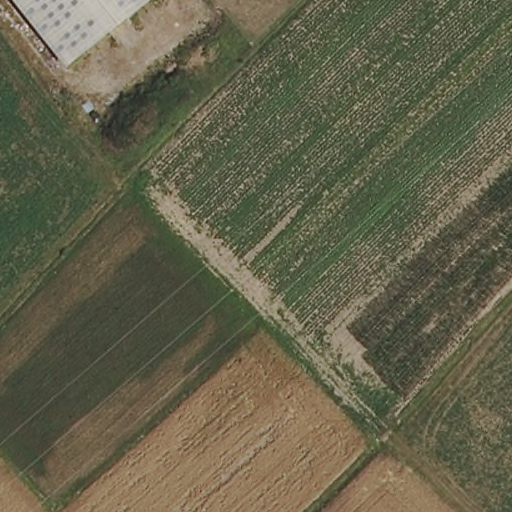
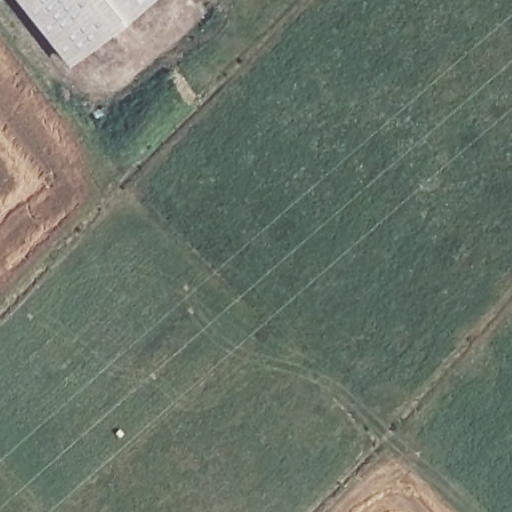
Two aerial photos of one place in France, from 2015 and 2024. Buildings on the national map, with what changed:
unchanged [(67,59),(20,0),(141,0),(67,59)]

